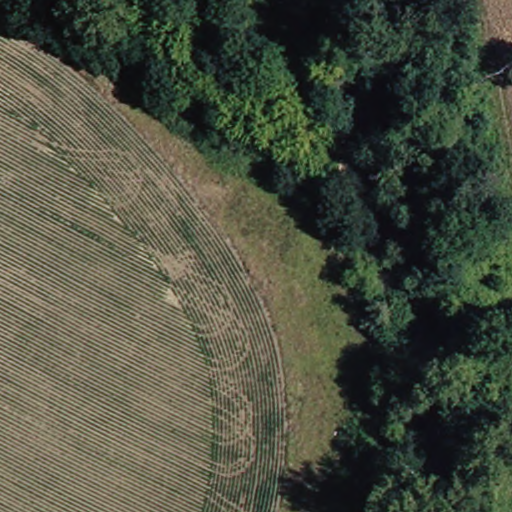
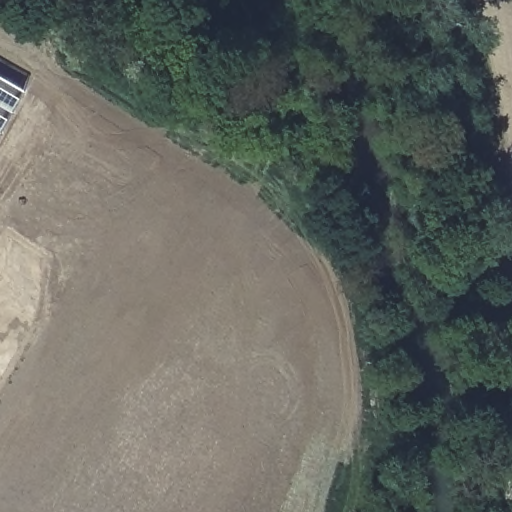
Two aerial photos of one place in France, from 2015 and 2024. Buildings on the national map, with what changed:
new [(0,132),(0,76),(25,90),(0,132)]

